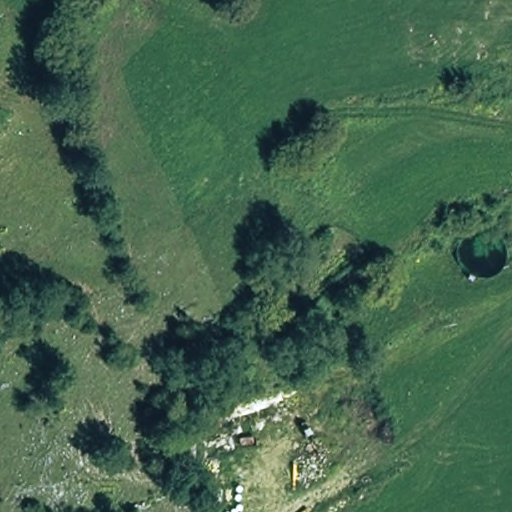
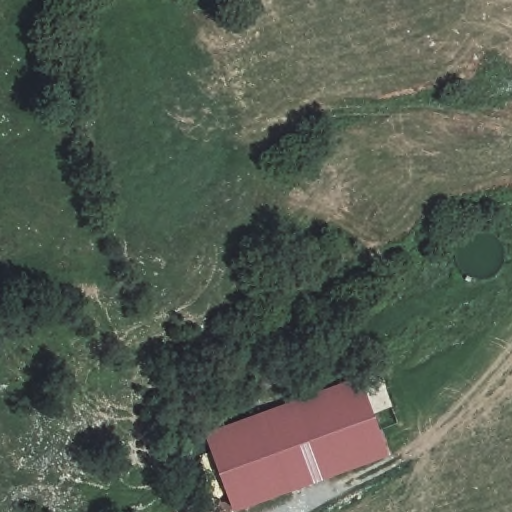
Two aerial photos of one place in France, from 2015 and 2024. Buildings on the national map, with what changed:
new [(387,454),(233,510),(211,436),(362,382),(387,454)]
demolished [(216,449),(296,425),(309,469),(231,499),(216,449)]

